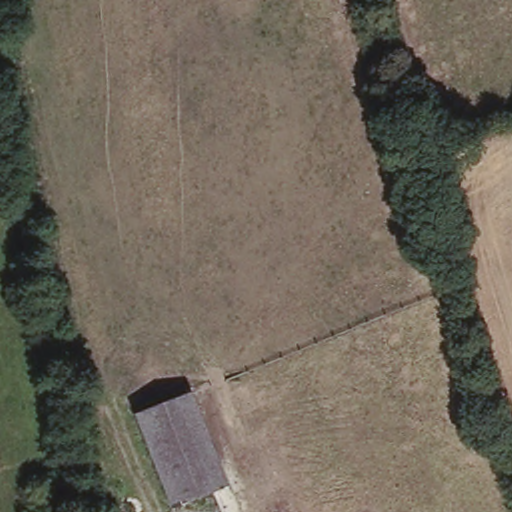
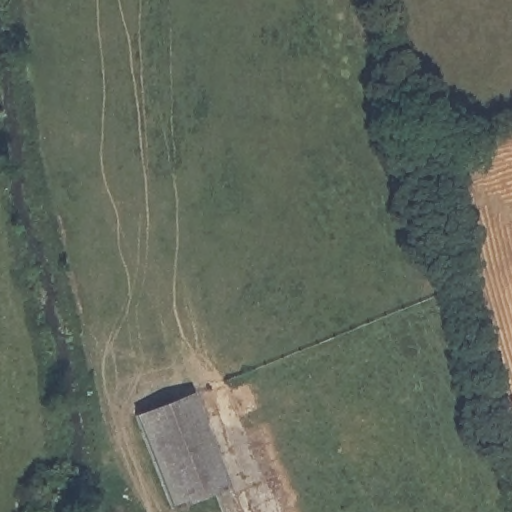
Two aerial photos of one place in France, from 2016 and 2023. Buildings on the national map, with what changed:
unchanged [(176,507),(138,410),(195,388),(233,486),(176,507)]

